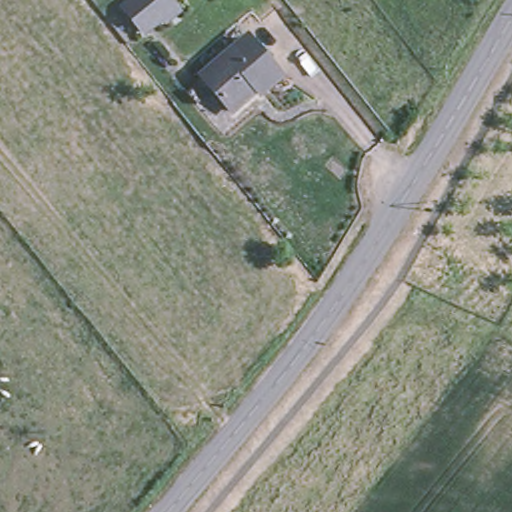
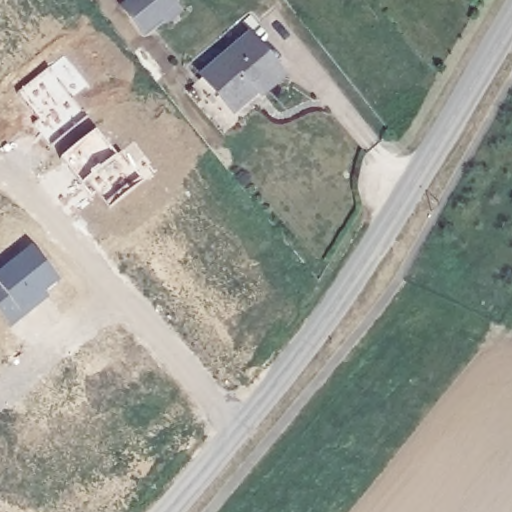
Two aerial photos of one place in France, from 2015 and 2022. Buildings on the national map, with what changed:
unchanged [(125,1),(126,0),(174,0),(145,24),(125,1)]
unchanged [(247,35),(280,74),(265,86),(260,90),(257,88),(231,109),(201,75),(233,48),(247,35)]
new [(51,146),(37,126),(40,124),(21,90),(51,68),(88,115),(51,146)]
new [(145,182),(110,207),(98,193),(93,197),(60,155),(97,127),(145,182)]
new [(60,278),(44,290),(49,296),(13,327),(0,311),(0,273),(32,244),(60,278)]

